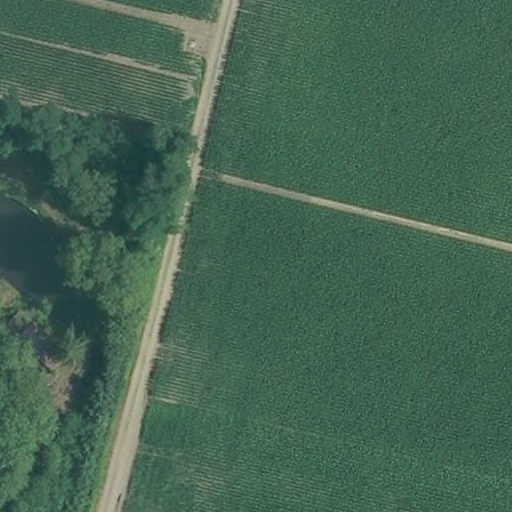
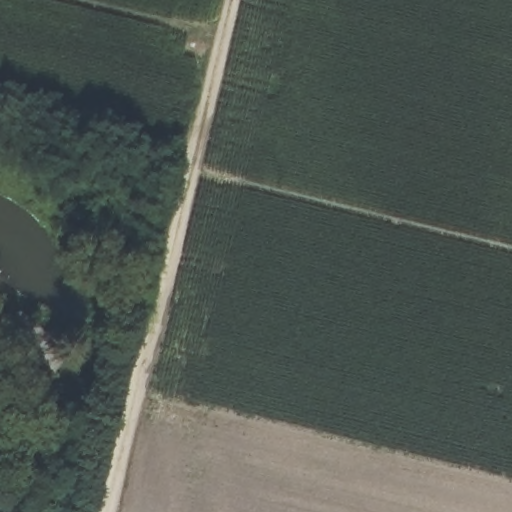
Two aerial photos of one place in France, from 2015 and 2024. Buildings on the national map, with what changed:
unchanged [(62,366),(41,383),(11,344),(32,327),(62,366)]

